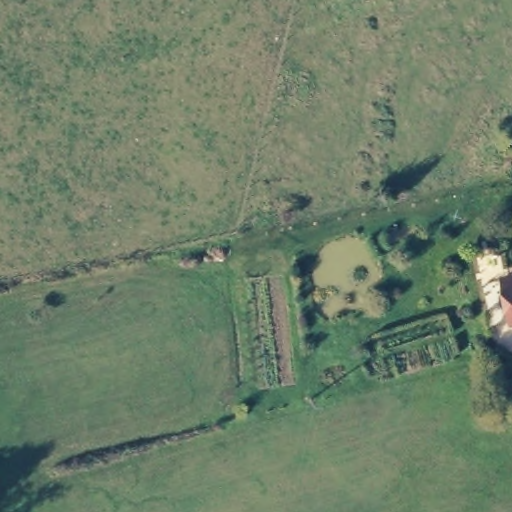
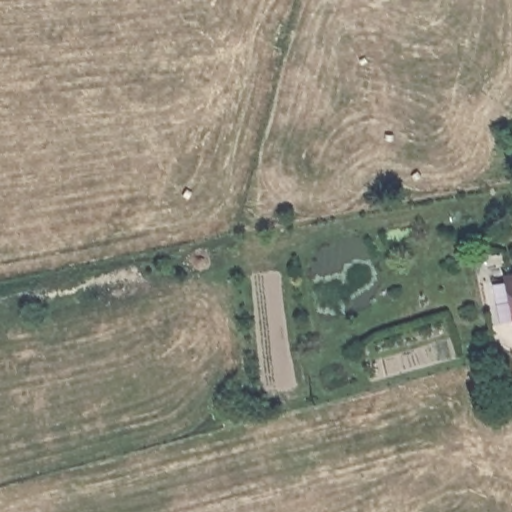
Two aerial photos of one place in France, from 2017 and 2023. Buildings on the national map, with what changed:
unchanged [(512,269),(512,323),(507,323),(500,272),(512,269)]

